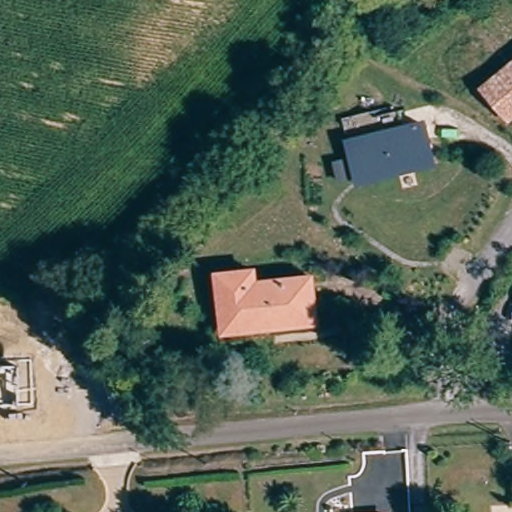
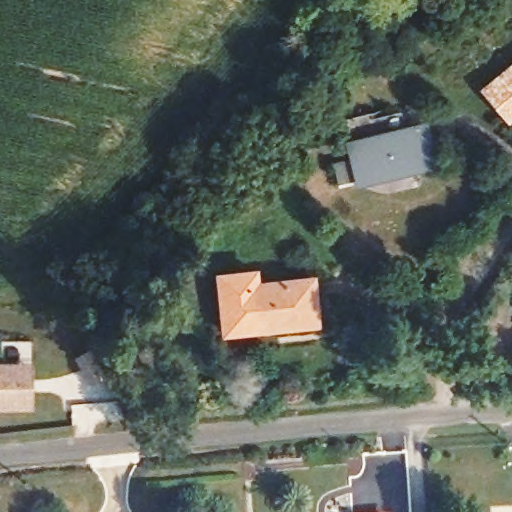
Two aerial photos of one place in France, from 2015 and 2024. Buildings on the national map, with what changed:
unchanged [(509,120),(486,89),(512,68),(512,118),(509,120)]
unchanged [(349,124),(407,113),(411,132),(353,144),(349,124)]
unchanged [(411,132),(430,127),(438,165),(360,181),(353,144),(411,132)]
unchanged [(227,326),(224,277),(258,274),(259,287),(315,282),(319,326),(272,330),(227,334),(227,326)]
new [(0,363),(34,363),(35,411),(0,411),(0,363)]
demolished [(21,420),(21,429),(0,430),(0,402),(21,399),(21,420)]
unchanged [(369,512),(386,511),(386,512),(369,512)]

